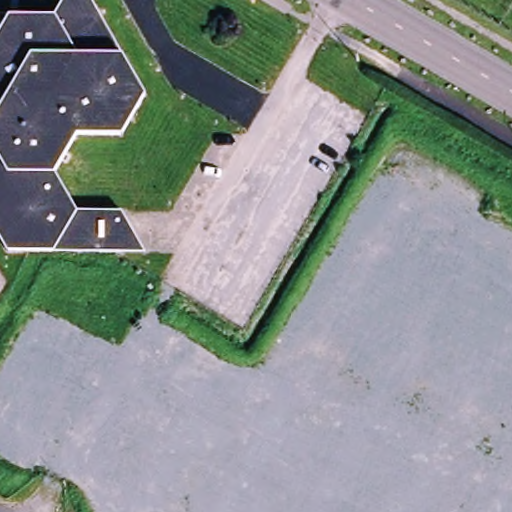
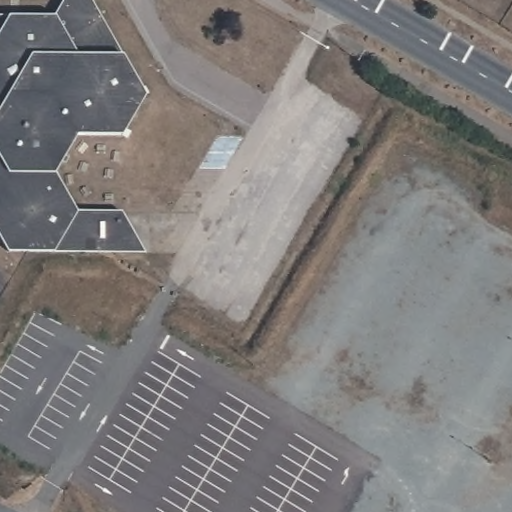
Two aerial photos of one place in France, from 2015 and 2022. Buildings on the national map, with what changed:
unchanged [(5,251),(0,240),(0,16),(52,16),(62,0),(88,0),(143,95),(120,135),(75,135),(52,171),(75,210),(120,211),(142,252),(5,251)]

